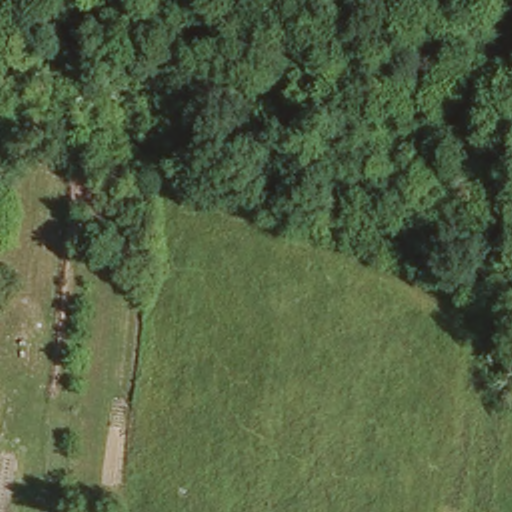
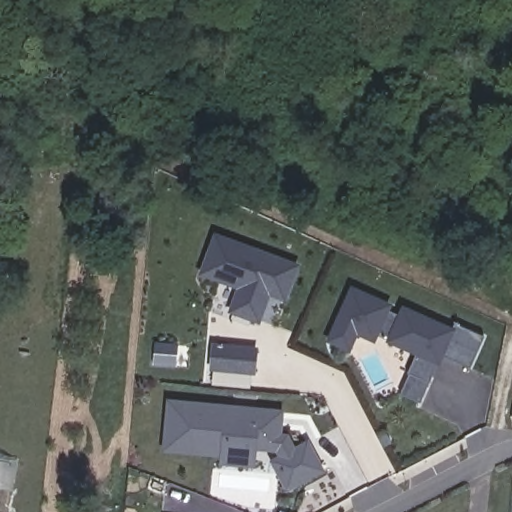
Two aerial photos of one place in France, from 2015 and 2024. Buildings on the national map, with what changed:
new [(300,264),(289,292),(273,285),(261,318),(235,308),(243,284),(206,270),(220,233),(300,264)]
new [(393,309),(406,314),(409,307),(446,324),(442,332),(454,337),(460,323),(490,336),(475,368),(447,354),(434,382),(413,372),(422,352),(394,339),(396,336),(383,330),(379,339),(362,331),(354,348),(334,339),(358,288),(395,304),(393,309)]
new [(257,369),(215,365),(217,343),(259,348),(257,369)]
new [(405,393),(415,373),(434,382),(426,402),(405,393)]
new [(284,456),(290,466),(280,448),(258,444),(257,451),(168,442),(172,399),(274,409),(284,411),(282,427),(281,434),(289,435),(296,449),(310,442),(324,469),(290,486),(281,471),(276,460),(284,456)]
new [(226,448),(257,451),(256,463),(225,459),(226,448)]
new [(8,512),(0,512),(0,458),(17,461),(8,512)]

